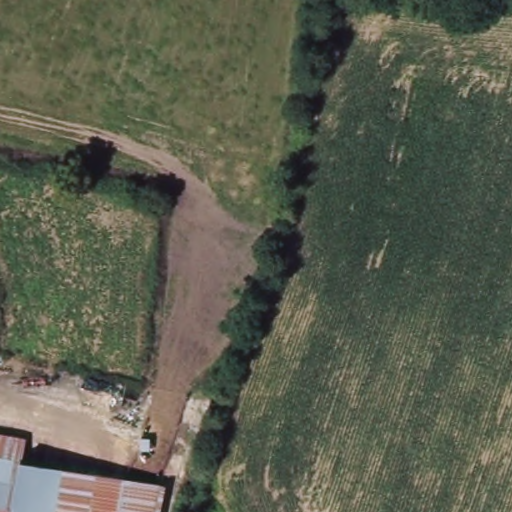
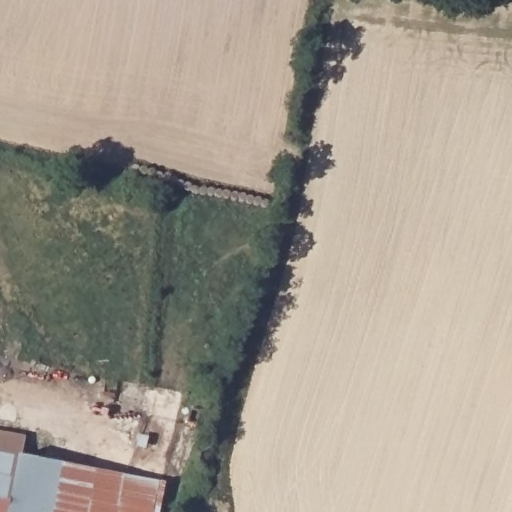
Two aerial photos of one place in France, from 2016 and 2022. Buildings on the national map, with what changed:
unchanged [(22,461),(161,487),(156,512),(0,512),(0,436),(26,441),(22,461)]

